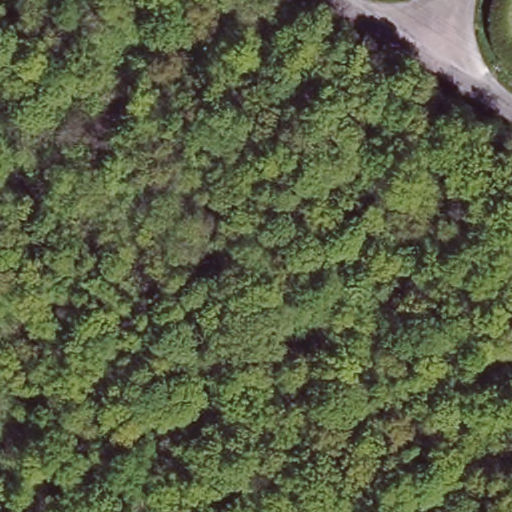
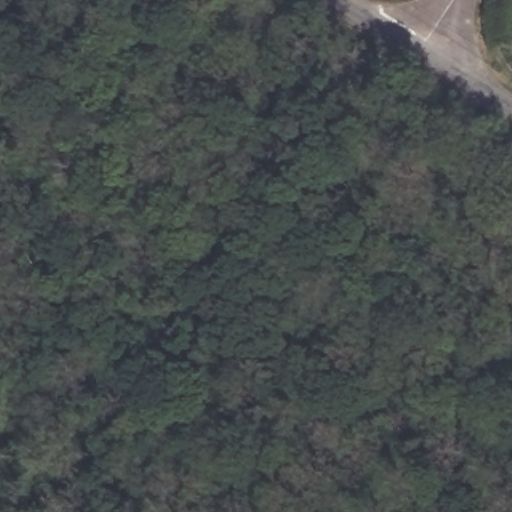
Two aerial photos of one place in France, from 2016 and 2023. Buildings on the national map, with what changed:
[]

